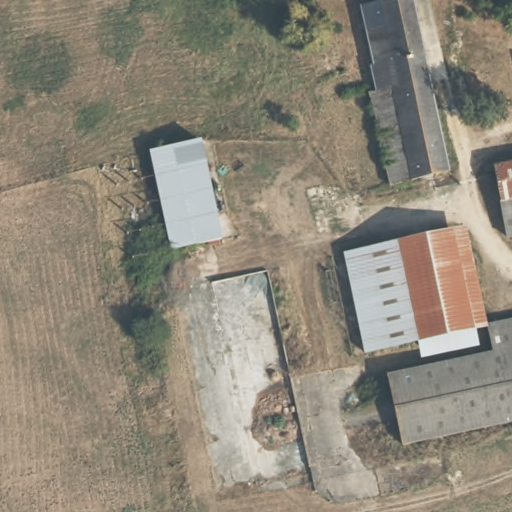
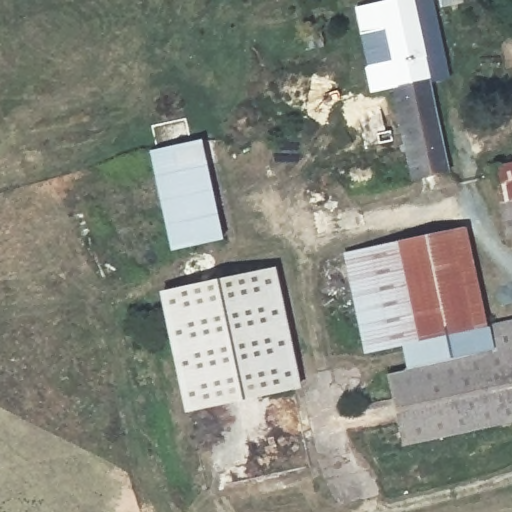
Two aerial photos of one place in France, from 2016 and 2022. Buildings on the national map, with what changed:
unchanged [(379,89),(363,5),(387,0),(414,0),(451,171),(415,178),(395,86),(379,89)]
demolished [(323,36),(325,44),(328,56),(332,75),(318,79),(310,39),(323,36)]
unchanged [(339,40),(343,54),(328,56),(325,44),(339,40)]
unchanged [(395,182),(372,90),(379,89),(395,86),(415,178),(395,182)]
unchanged [(202,141),(224,239),(173,250),(149,155),(202,141)]
unchanged [(512,167),(512,200),(504,202),(497,171),(512,167)]
unchanged [(512,200),(512,236),(504,202),(512,200)]
unchanged [(464,227),(485,323),(400,343),(374,247),(464,227)]
unchanged [(400,343),(366,350),(345,254),(374,247),(400,343)]
new [(158,291),(275,266),(301,388),(184,413),(158,291)]
unchanged [(485,323),(512,317),(512,416),(427,437),(407,370),(490,348),(485,323)]
new [(485,323),(490,348),(407,370),(400,343),(485,323)]
unchanged [(404,442),(389,374),(407,370),(427,437),(404,442)]

